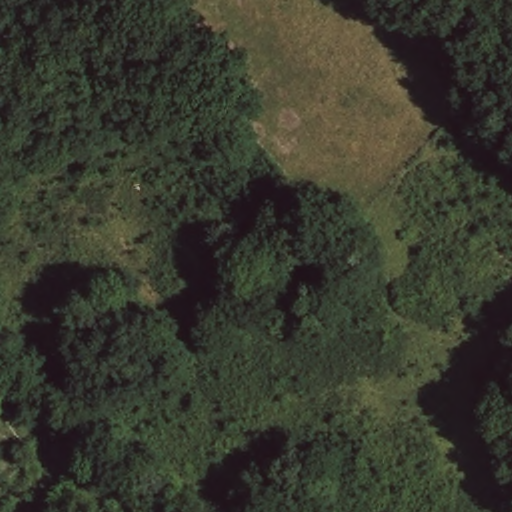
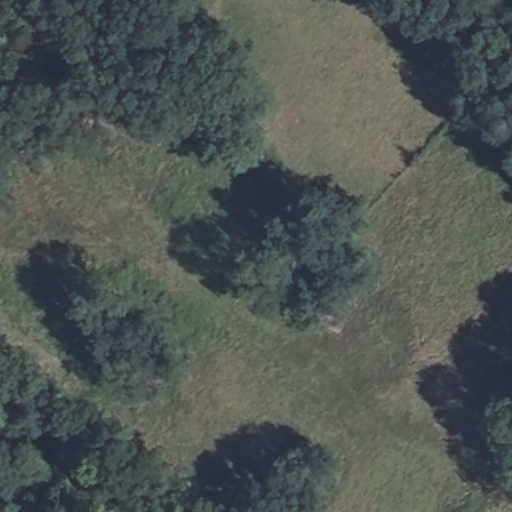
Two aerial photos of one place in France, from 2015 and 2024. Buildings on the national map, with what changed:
[]

